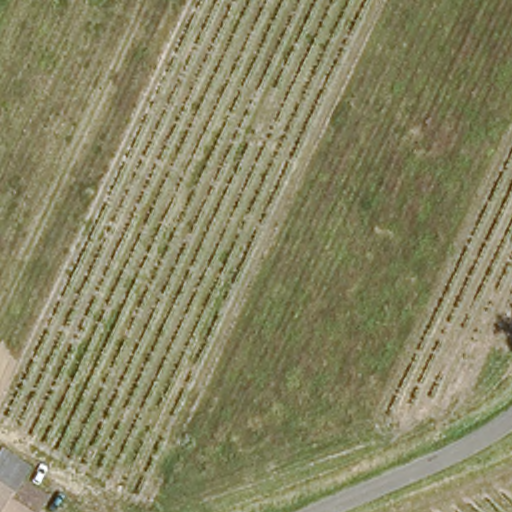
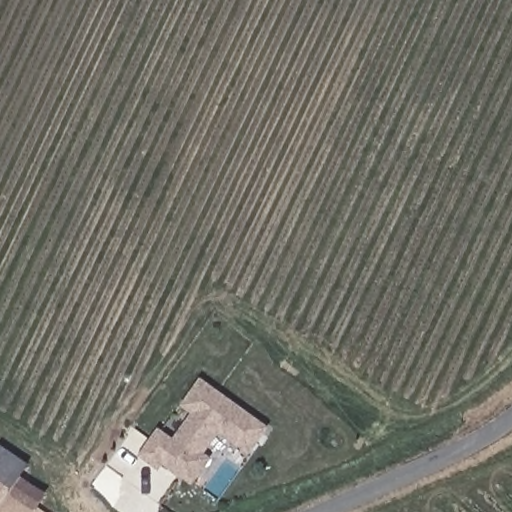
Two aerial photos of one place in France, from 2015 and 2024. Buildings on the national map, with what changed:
new [(205,453),(213,458),(192,487),(163,465),(158,471),(139,457),(159,428),(174,439),(191,415),(180,407),(202,378),(270,428),(249,457),(219,435),(205,453)]
unchanged [(15,477),(39,493),(31,503),(0,482),(0,445),(24,463),(15,477)]
unchanged [(44,512),(0,512),(0,482),(31,503),(44,512)]

